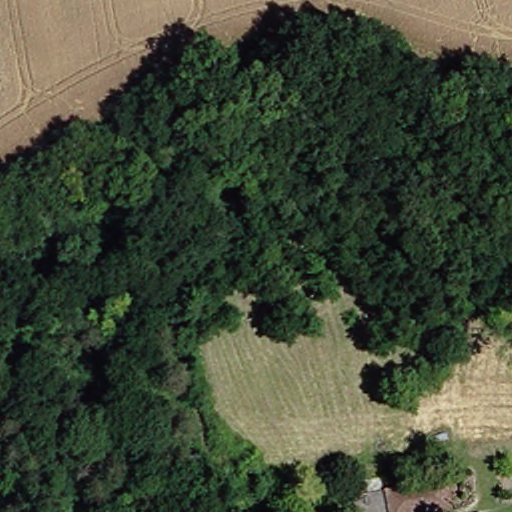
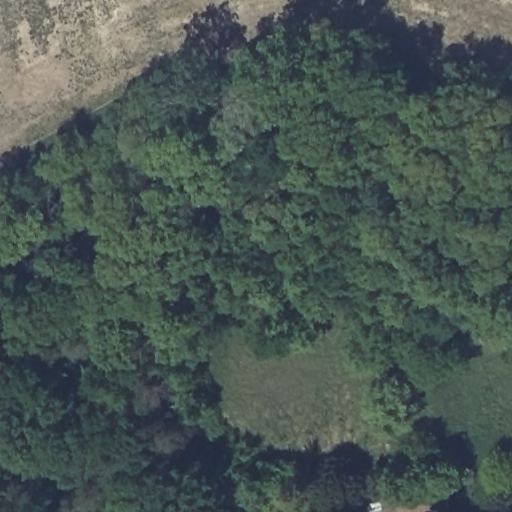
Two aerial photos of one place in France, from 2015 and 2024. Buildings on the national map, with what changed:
unchanged [(459,480),(474,476),(479,495),(464,499),(468,512),(387,512),(380,489),(397,484),(400,498),(459,484),(459,480)]
unchanged [(275,512),(257,512),(256,507),(273,503),(275,512)]

